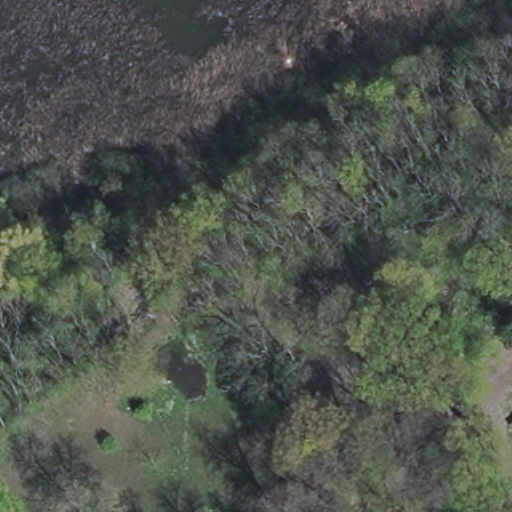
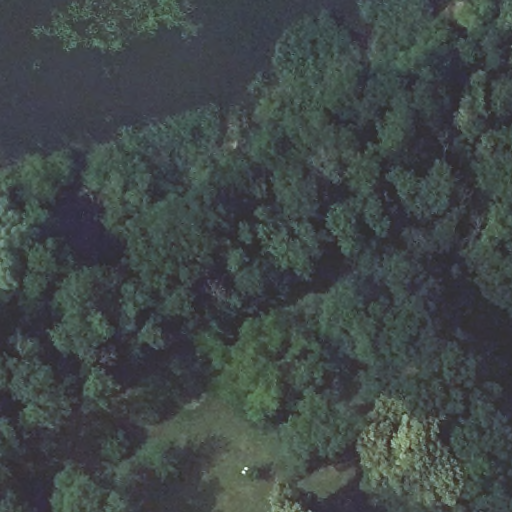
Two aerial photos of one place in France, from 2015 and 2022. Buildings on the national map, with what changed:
unchanged [(507,432),(512,428),(512,438),(507,432)]

